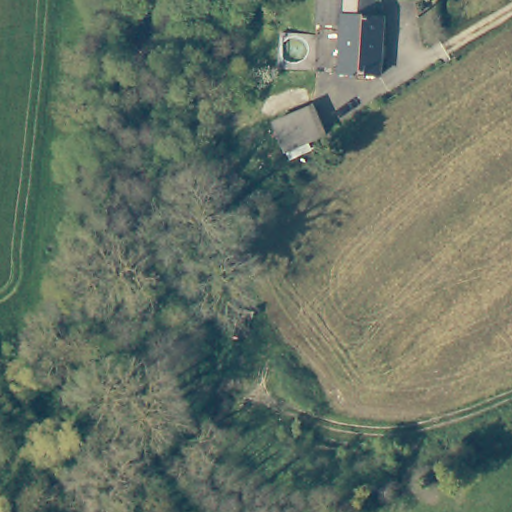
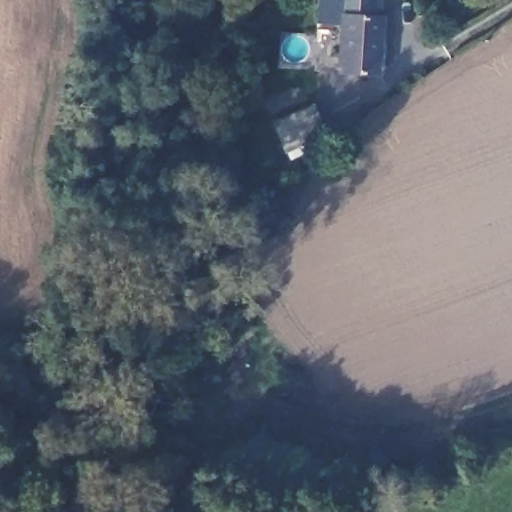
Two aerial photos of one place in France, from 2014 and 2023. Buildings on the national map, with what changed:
unchanged [(340,1),(369,2),(368,19),(378,19),(374,78),(334,75),(340,1)]
unchanged [(274,116),(313,101),(328,138),(285,151),(274,116)]

